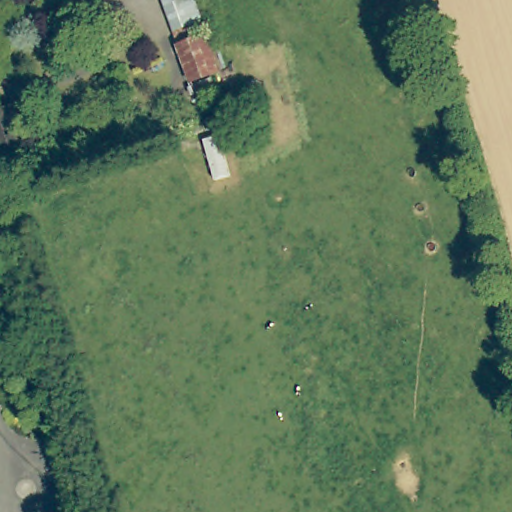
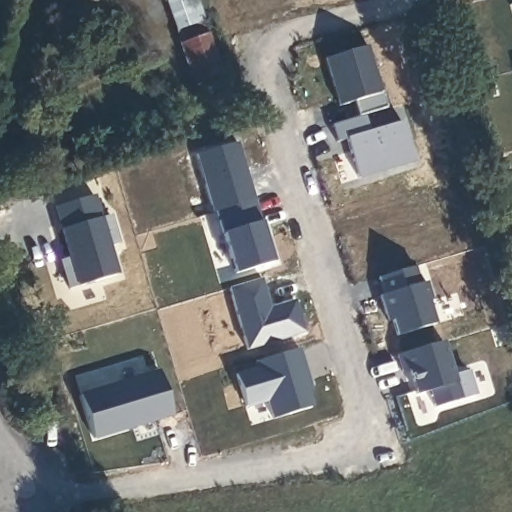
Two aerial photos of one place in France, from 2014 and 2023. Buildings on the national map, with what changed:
unchanged [(195,0),(207,34),(183,43),(168,0),(195,0)]
unchanged [(221,71),(193,81),(179,45),(183,43),(207,34),(221,71)]
new [(366,47),(385,109),(363,116),(356,118),(352,103),(337,106),(323,60),(366,47)]
demolished [(33,146),(2,158),(0,152),(0,110),(15,105),(33,146)]
new [(356,118),(363,116),(368,131),(400,122),(413,163),(357,180),(345,140),(335,143),(330,126),(356,118)]
new [(238,144),(272,263),(234,275),(200,154),(238,144)]
new [(92,195),(99,217),(108,214),(119,246),(109,249),(117,274),(69,289),(62,266),(72,263),(54,207),(92,195)]
new [(414,267),(419,284),(426,282),(431,300),(428,301),(435,324),(396,335),(390,313),(385,315),(379,296),(383,295),(378,278),(414,267)]
new [(265,280),(273,309),(299,301),(308,334),(251,351),(232,290),(265,280)]
new [(399,354),(442,341),(452,374),(467,370),(474,395),(435,407),(429,390),(417,394),(409,370),(402,372),(397,355),(399,354)]
new [(258,368),(256,362),(298,348),(311,389),(306,391),(311,408),(273,419),(268,401),(245,407),(235,375),(258,368)]
new [(97,442),(81,393),(161,369),(177,417),(97,442)]

